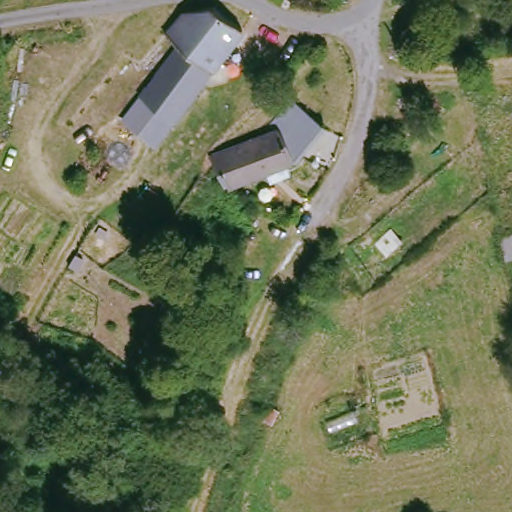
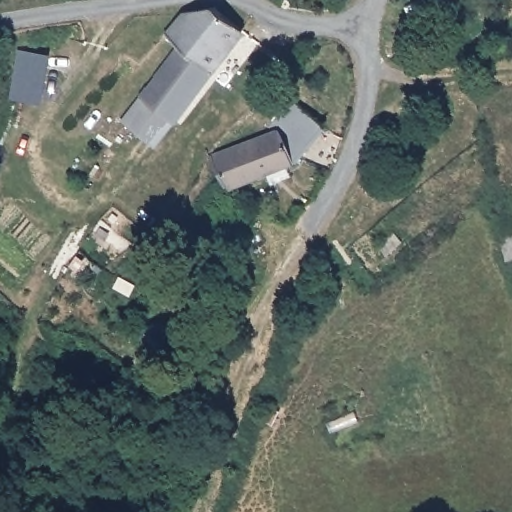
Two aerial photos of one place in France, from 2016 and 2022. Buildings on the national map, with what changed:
unchanged [(153,150),(149,149),(119,128),(176,52),(163,41),(178,20),(211,16),(219,22),(225,16),(243,31),(153,150)]
new [(17,50),(45,54),(39,101),(10,99),(17,50)]
unchanged [(270,132),(266,127),(289,104),(319,130),(290,167),(224,189),(204,155),(270,132)]
unchanged [(512,234),(512,264),(507,265),(499,237),(512,234)]

